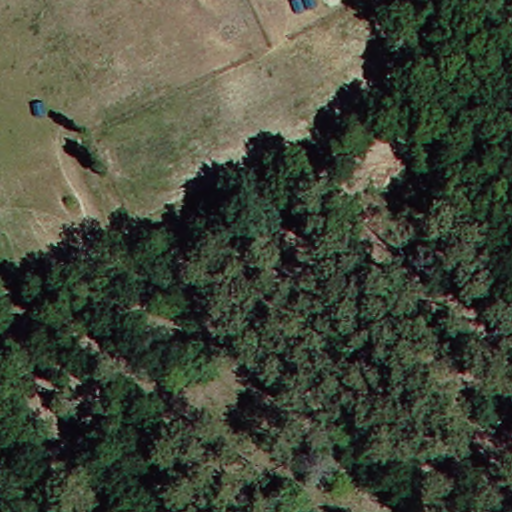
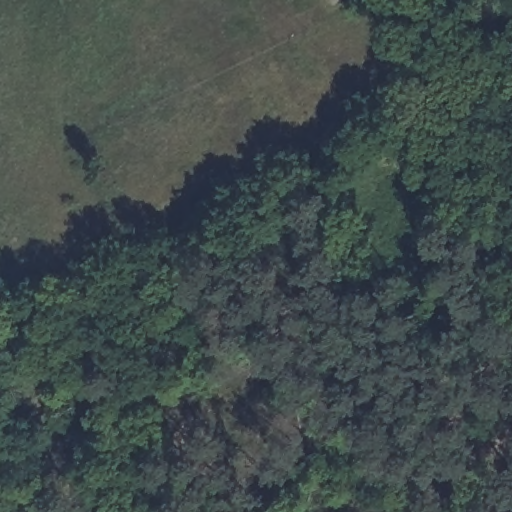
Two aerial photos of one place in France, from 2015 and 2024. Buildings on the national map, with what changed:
[]

